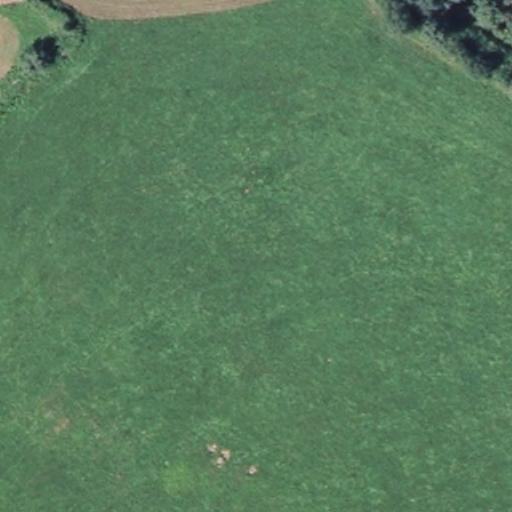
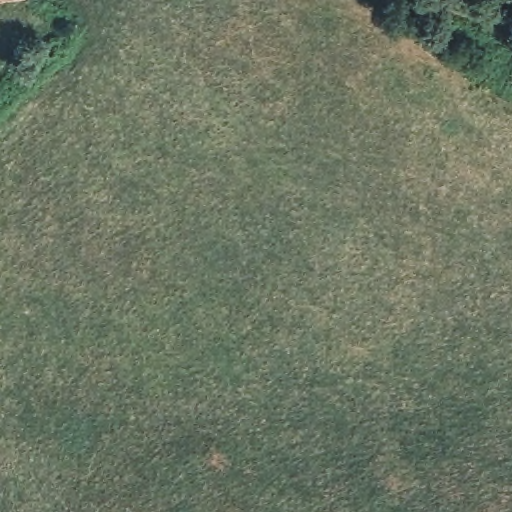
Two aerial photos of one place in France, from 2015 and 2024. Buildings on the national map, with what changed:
unchanged [(0,0),(29,0),(29,2),(0,6),(0,0)]

